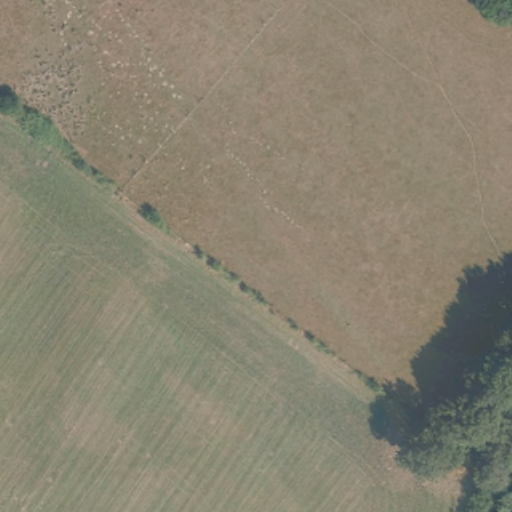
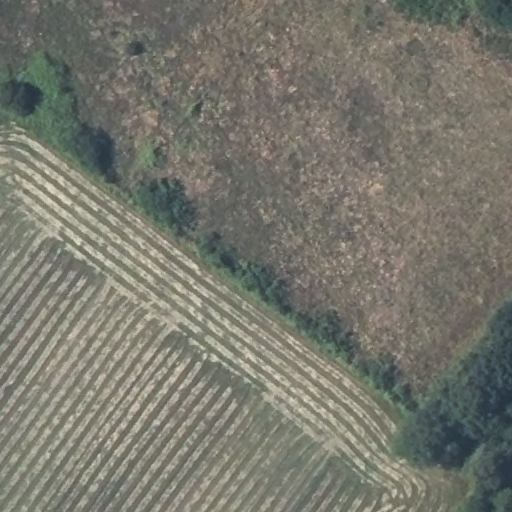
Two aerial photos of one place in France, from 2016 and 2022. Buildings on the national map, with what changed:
[]

